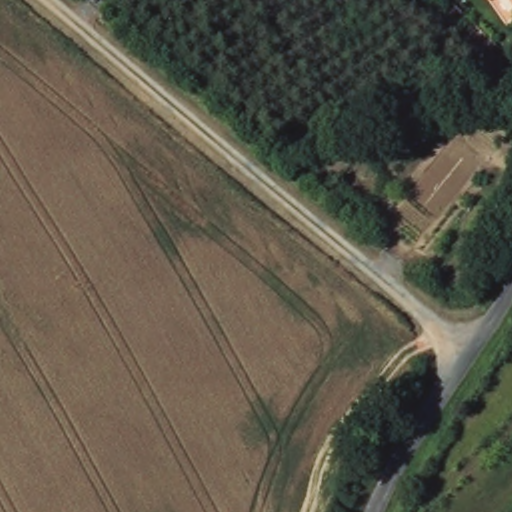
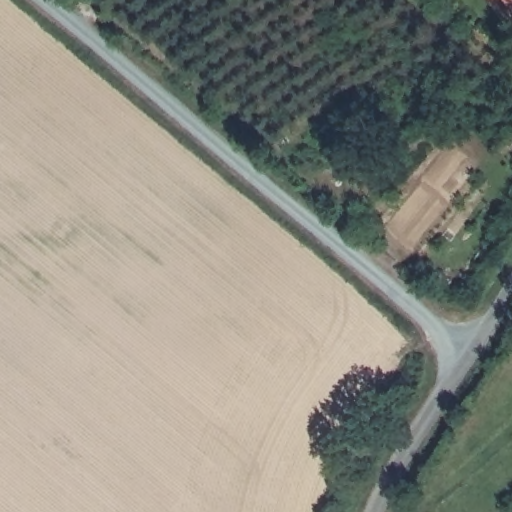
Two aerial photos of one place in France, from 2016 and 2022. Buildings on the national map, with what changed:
unchanged [(512,0),(512,2),(510,0),(512,0)]

